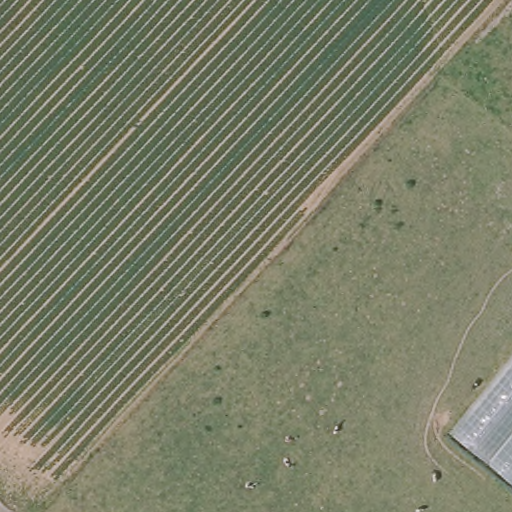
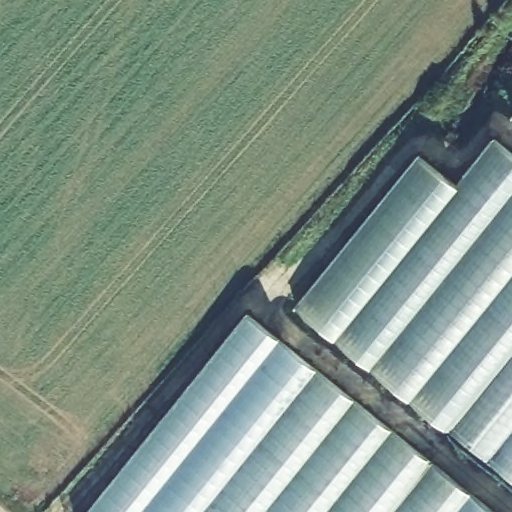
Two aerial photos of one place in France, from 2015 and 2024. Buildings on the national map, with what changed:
new [(449,432),(296,308),(419,154),(457,186),(494,137),(512,152),(512,355),(449,432)]
new [(89,512),(248,314),(494,512),(89,512)]
unchanged [(449,432),(512,355),(512,482),(449,432)]

